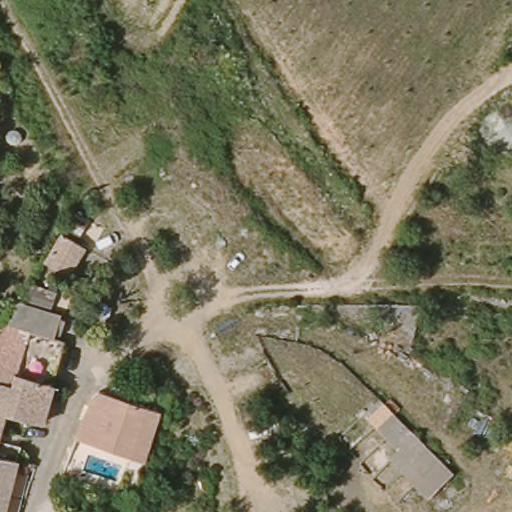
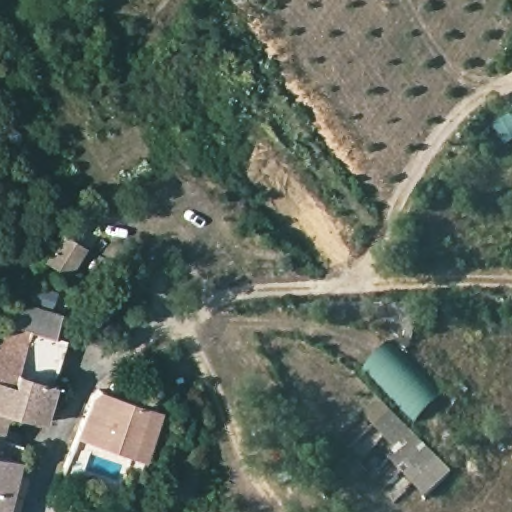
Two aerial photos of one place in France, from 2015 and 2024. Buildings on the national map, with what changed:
unchanged [(35,417),(4,408),(11,386),(0,382),(0,324),(3,318),(63,335),(39,418),(35,417)]
new [(445,397),(415,426),(363,372),(394,342),(445,397)]
unchanged [(0,421),(0,382),(11,386),(4,408),(0,421)]
unchanged [(145,457),(75,425),(93,383),(160,412),(145,457)]
unchanged [(418,477),(409,467),(400,475),(385,455),(393,449),(362,412),(378,397),(437,461),(418,477)]
unchanged [(0,512),(0,451),(16,456),(15,460),(21,461),(19,469),(12,467),(1,512),(0,512)]

